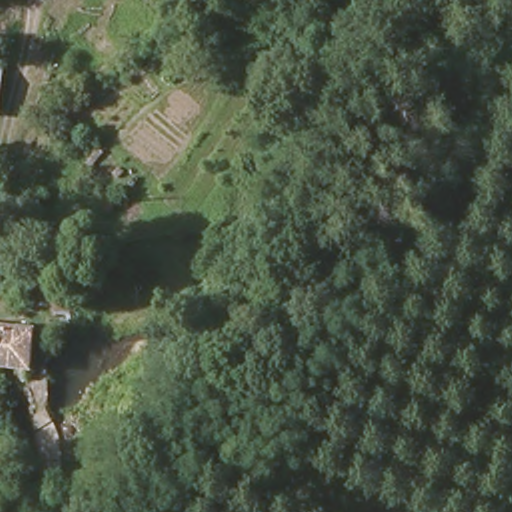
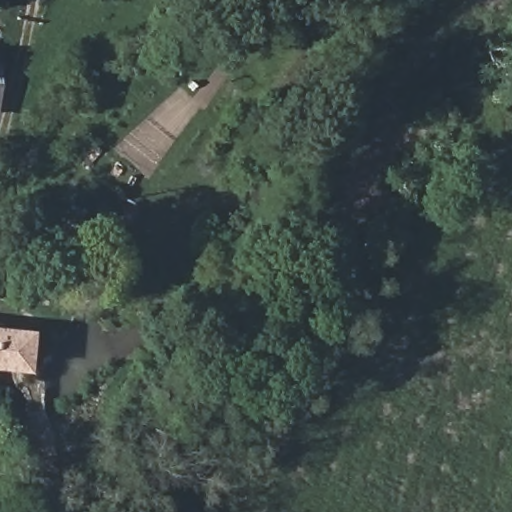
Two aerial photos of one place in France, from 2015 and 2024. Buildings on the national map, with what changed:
unchanged [(0,119),(0,82),(4,82),(1,120),(0,119)]
unchanged [(35,367),(4,366),(0,366),(0,323),(38,326),(35,367)]

